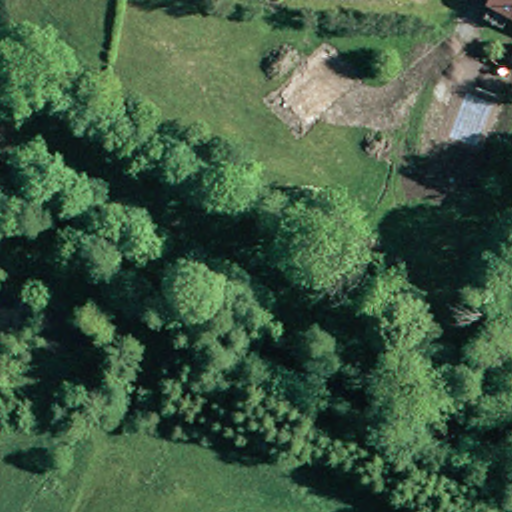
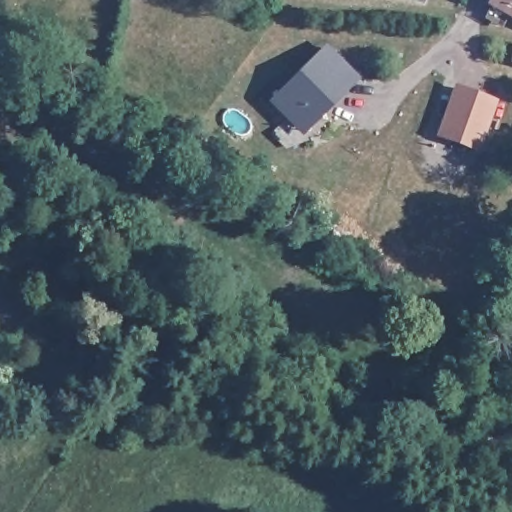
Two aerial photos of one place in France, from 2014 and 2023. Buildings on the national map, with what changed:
unchanged [(492,9),(496,0),(512,0),(512,19),(492,9)]
new [(360,76),(304,135),(268,101),(326,42),(360,76)]
new [(499,100),(482,152),(436,137),(454,85),(499,100)]

